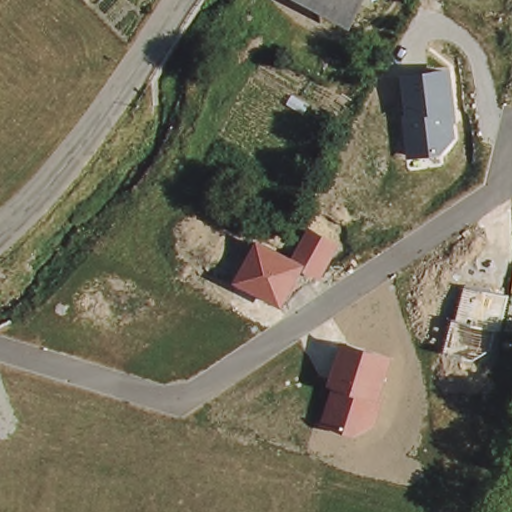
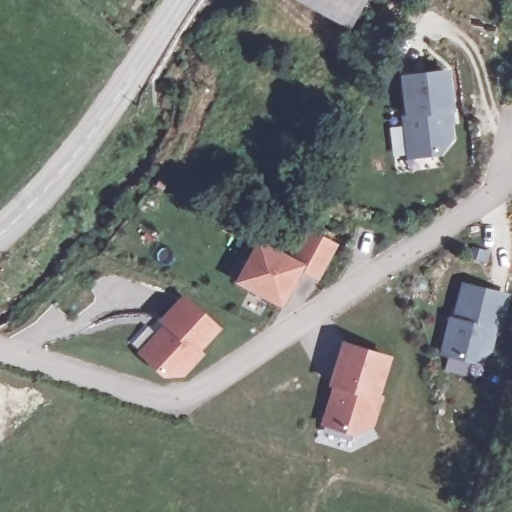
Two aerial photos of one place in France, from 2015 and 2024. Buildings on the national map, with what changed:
unchanged [(305,0),(363,0),(353,22),(305,0)]
unchanged [(449,69),(456,125),(454,125),(454,139),(440,155),(407,157),(403,119),(405,117),(401,74),(449,69)]
unchanged [(295,258),(309,230),(339,246),(321,279),(303,270),(285,307),(237,283),(259,240),(295,258)]
unchanged [(509,298),(501,333),(496,332),(491,351),(474,361),(443,353),(451,320),(456,321),(465,287),(509,298)]
new [(162,319),(158,315),(179,292),(212,323),(191,345),(194,348),(177,367),(159,368),(136,347),(162,319)]
unchanged [(393,356),(383,392),(387,393),(378,427),(375,427),(359,437),(341,432),(336,427),(324,423),(335,387),(332,386),(344,341),(393,356)]

